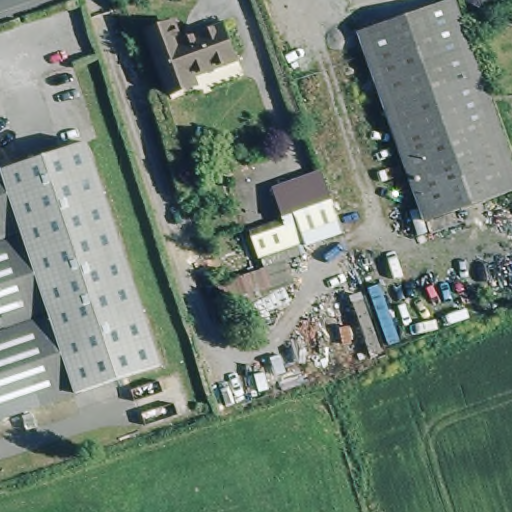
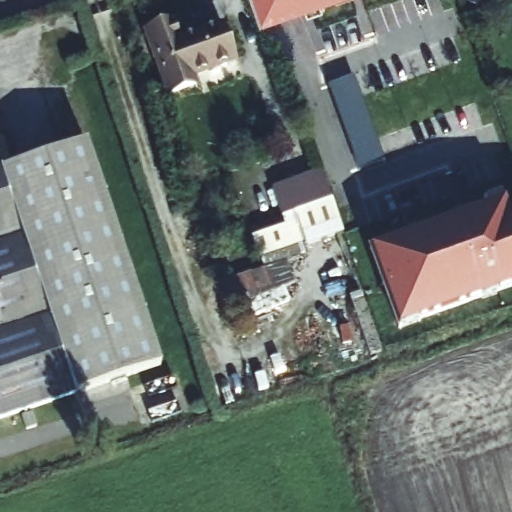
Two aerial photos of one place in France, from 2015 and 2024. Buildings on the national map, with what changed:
new [(267,13),(263,0),(310,0),(267,13)]
demolished [(451,0),(453,0),(512,168),(512,190),(425,221),(359,32),(451,0)]
unchanged [(172,18),(179,37),(222,22),(234,55),(192,71),(195,80),(169,90),(145,28),(172,18)]
new [(384,162),(359,171),(328,87),(353,77),(384,162)]
unchanged [(88,143),(160,366),(75,394),(1,173),(88,143)]
unchanged [(0,419),(0,170),(75,394),(0,419)]
unchanged [(344,235),(308,248),(307,243),(299,246),(302,257),(287,261),(297,283),(283,288),(290,304),(241,322),(234,301),(224,302),(220,287),(264,269),(250,227),(285,217),(274,186),(320,170),(344,235)]
new [(484,200),(500,194),(503,202),(508,217),(512,216),(512,282),(395,323),(370,249),(487,209),(484,200)]

